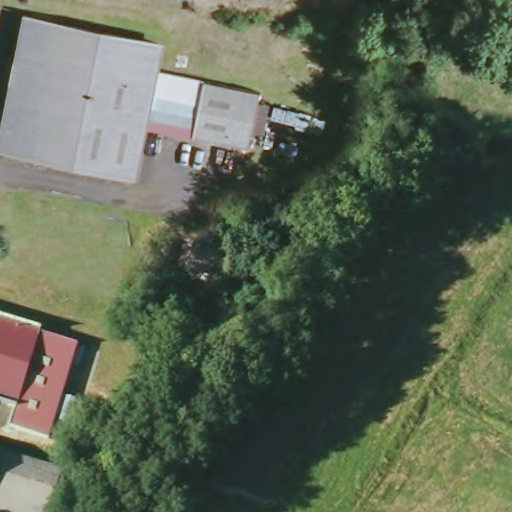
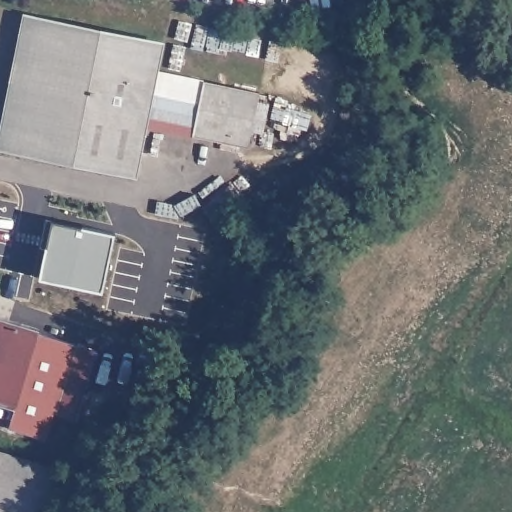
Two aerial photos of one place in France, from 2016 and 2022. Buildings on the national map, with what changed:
unchanged [(0,150),(0,138),(20,19),(37,22),(12,152),(0,150)]
unchanged [(260,126),(250,124),(247,143),(141,125),(133,173),(12,152),(37,22),(156,42),(150,69),(256,88),(254,100),(265,101),(260,126)]
new [(54,221),(116,234),(104,290),(45,277),(54,221)]
unchanged [(52,424),(46,443),(9,430),(16,408),(0,403),(0,322),(77,348),(61,398),(80,404),(71,428),(52,424)]
unchanged [(0,512),(0,500),(0,458),(58,476),(47,512),(0,512)]

